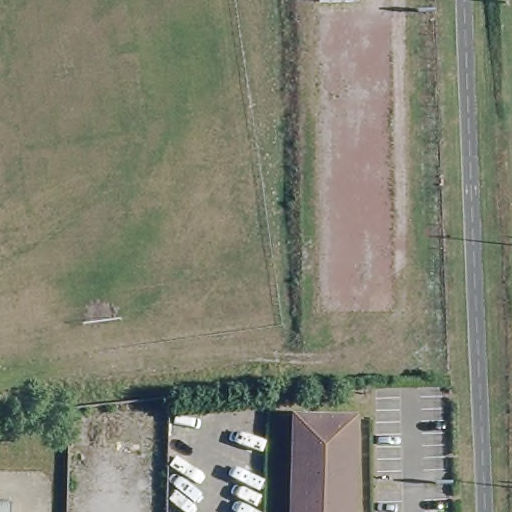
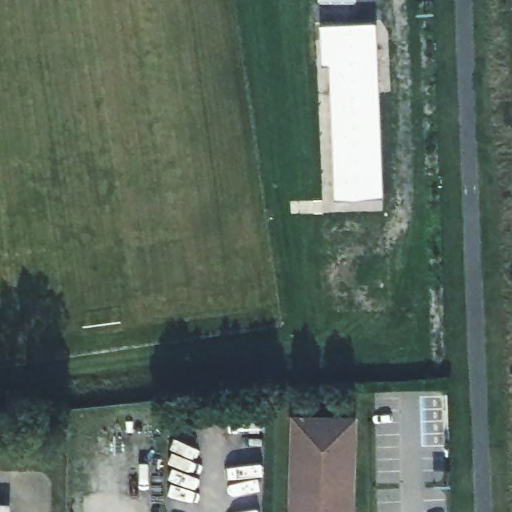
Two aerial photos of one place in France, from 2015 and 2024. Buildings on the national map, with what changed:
new [(317,62),(315,22),(371,20),(372,28),(324,30),(325,61),(317,62)]
new [(372,28),(378,193),(330,195),(324,30),(332,30),(372,28)]
unchanged [(352,420),(351,512),(291,512),(292,419),(352,420)]
unchanged [(11,512),(0,512),(0,508),(12,508),(11,512)]

